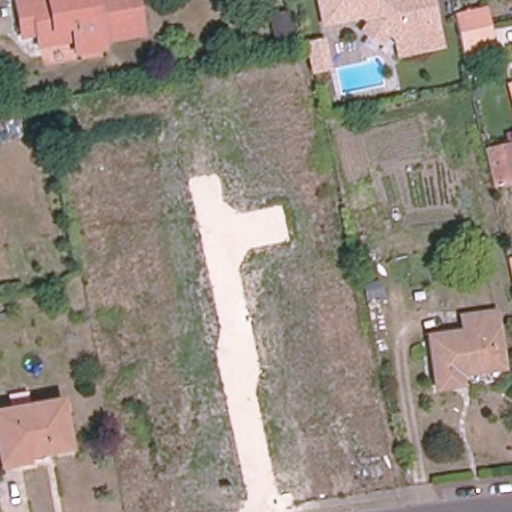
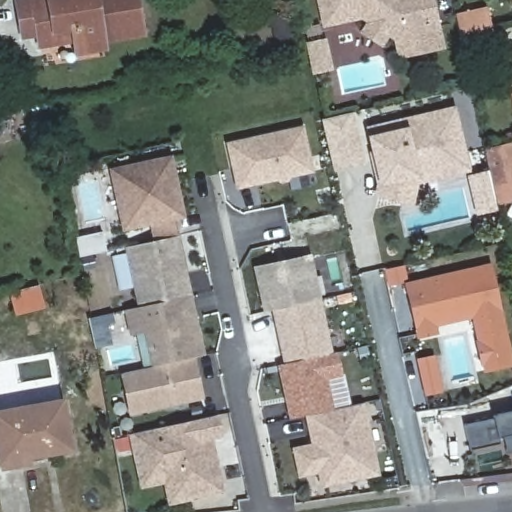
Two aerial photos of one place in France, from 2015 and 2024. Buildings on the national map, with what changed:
unchanged [(38,29),(23,31),(20,15),(18,0),(138,0),(142,29),(103,35),(104,43),(77,48),(75,35),(40,40),(38,29)]
unchanged [(366,33),(375,21),(366,16),(329,24),(323,0),(436,0),(446,45),(405,55),(400,37),(392,32),(384,45),(366,33)]
unchanged [(466,55),(459,23),(455,5),(478,0),(484,0),(488,16),(495,48),(466,55)]
unchanged [(295,41),(275,45),(270,17),(290,13),(295,41)]
new [(331,67),(311,72),(307,56),(316,54),(313,43),(325,40),(331,67)]
unchanged [(494,96),(477,100),(474,84),(490,80),(494,96)]
unchanged [(512,86),(512,96),(510,86),(512,86)]
unchanged [(65,119),(55,121),(51,102),(61,100),(65,119)]
new [(452,110),(465,167),(438,173),(437,169),(413,175),(408,201),(378,195),(381,183),(368,130),(452,110)]
new [(348,113),(360,162),(335,168),(324,119),(348,113)]
unchanged [(50,126),(34,130),(32,119),(47,116),(50,126)]
new [(236,189),(225,141),(305,123),(315,171),(236,189)]
unchanged [(512,181),(493,185),(485,148),(500,145),(510,142),(512,151),(512,181)]
new [(205,398),(129,414),(120,373),(152,366),(145,332),(130,334),(125,309),(137,306),(125,246),(151,240),(149,224),(122,229),(109,166),(171,154),(185,216),(176,218),(179,234),(205,354),(195,356),(205,398)]
new [(491,193),(495,207),(479,211),(475,197),(491,193)]
new [(100,232),(104,253),(76,260),(72,238),(100,232)]
new [(253,265),(311,252),(332,352),(338,350),(344,375),(328,378),(335,408),(365,402),(380,474),(320,486),(318,472),(298,476),(292,446),(310,442),(305,414),(290,417),(278,364),(282,363),(271,311),(264,312),(253,265)]
unchanged [(512,257),(512,277),(508,257),(512,257)]
new [(488,265),(510,363),(486,369),(473,314),(432,323),(434,330),(417,333),(406,284),(488,265)]
demolished [(505,368),(461,374),(462,385),(436,388),(430,336),(465,331),(462,316),(496,311),(505,368)]
unchanged [(2,467),(0,458),(0,455),(0,412),(61,401),(70,449),(27,457),(28,463),(2,467)]
new [(492,414),(512,410),(512,434),(498,437),(500,443),(469,449),(463,424),(493,417),(492,414)]
new [(214,439),(225,493),(167,505),(162,482),(141,486),(129,433),(156,426),(219,413),(224,436),(214,439)]

